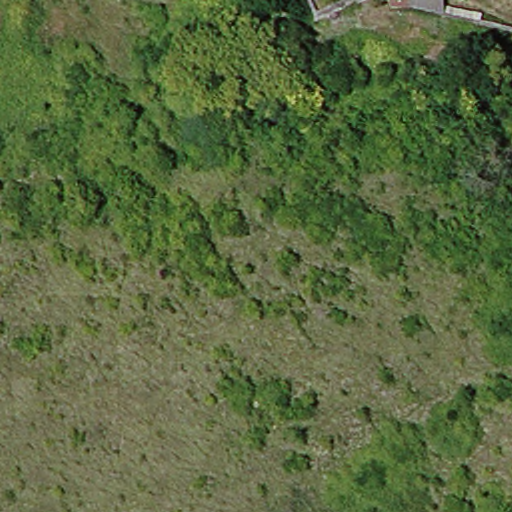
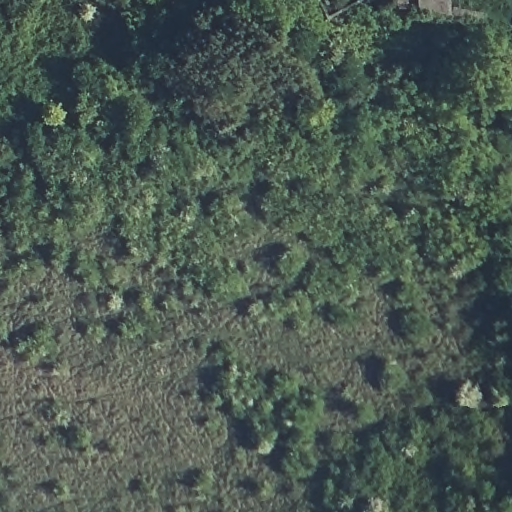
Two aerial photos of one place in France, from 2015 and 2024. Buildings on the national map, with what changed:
unchanged [(444,7),(411,0),(444,0),(444,7)]

